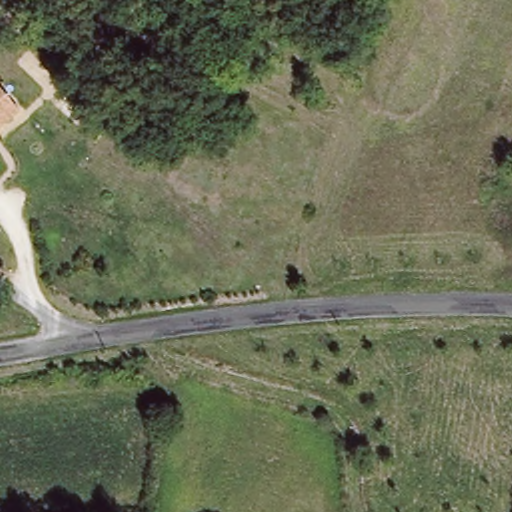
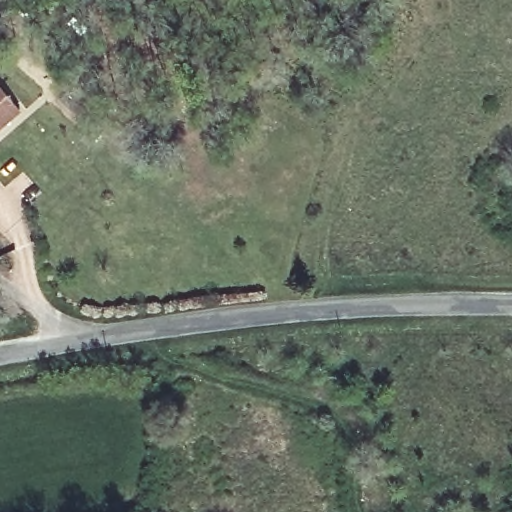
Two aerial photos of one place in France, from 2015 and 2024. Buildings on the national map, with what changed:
unchanged [(19,105),(0,122),(0,83),(19,105)]

